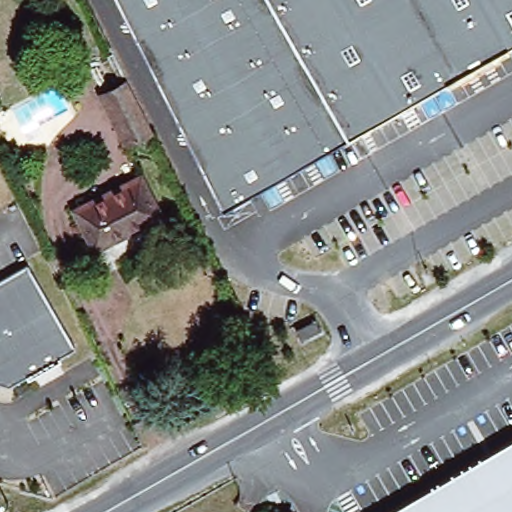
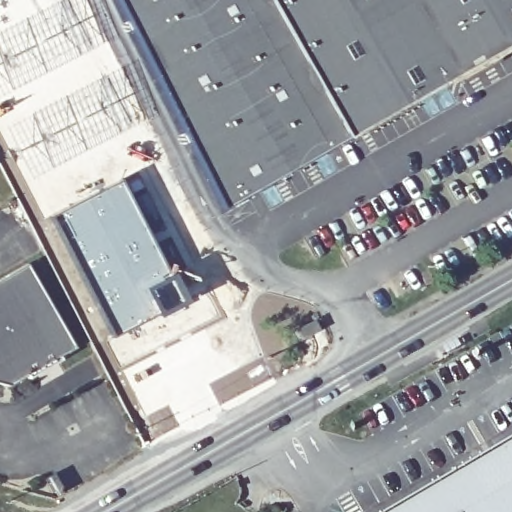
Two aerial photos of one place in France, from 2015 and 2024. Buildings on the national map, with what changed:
unchanged [(512,0),(512,53),(225,212),(121,0),(512,0)]
demolished [(153,131),(125,142),(99,94),(127,81),(153,131)]
demolished [(161,209),(95,245),(75,207),(144,171),(161,209)]
new [(121,179),(170,272),(144,288),(158,316),(111,337),(76,264),(78,263),(54,213),(121,179)]
unchanged [(0,320),(0,280),(28,263),(46,294),(0,320)]
new [(170,272),(174,270),(189,298),(158,316),(144,288),(170,272)]
unchanged [(46,294),(77,347),(61,357),(63,359),(55,363),(53,361),(36,371),(38,373),(30,378),(29,376),(0,393),(0,320),(46,294)]
unchanged [(318,331),(303,340),(298,330),(313,322),(318,331)]
unchanged [(512,444),(512,512),(398,512),(512,444)]

